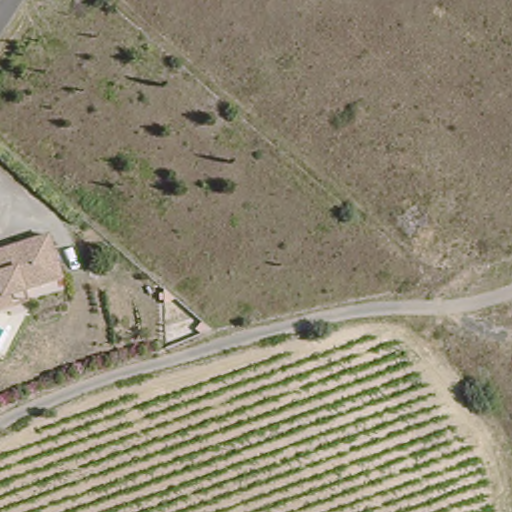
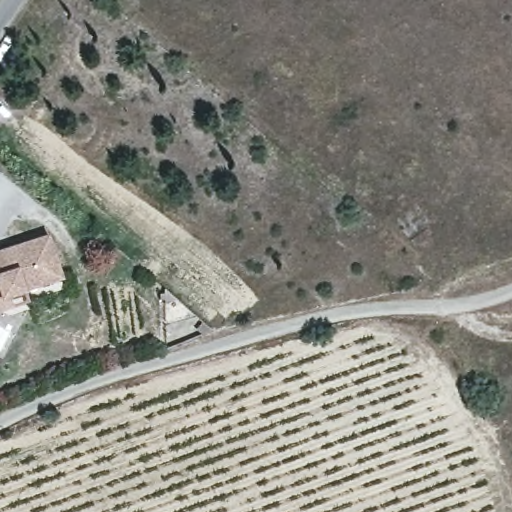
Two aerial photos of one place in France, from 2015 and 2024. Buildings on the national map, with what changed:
unchanged [(62,281),(27,291),(30,306),(0,312),(0,251),(46,236),(62,281)]

